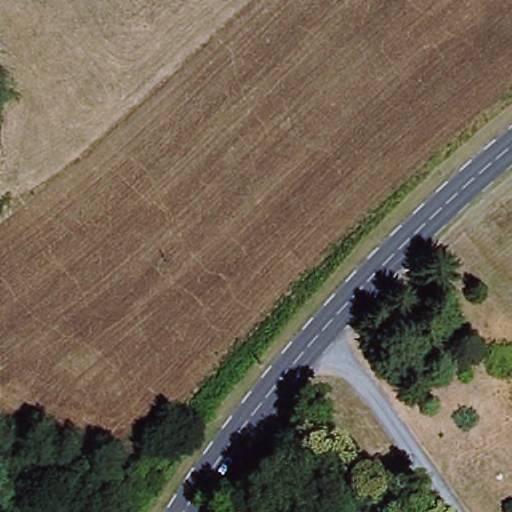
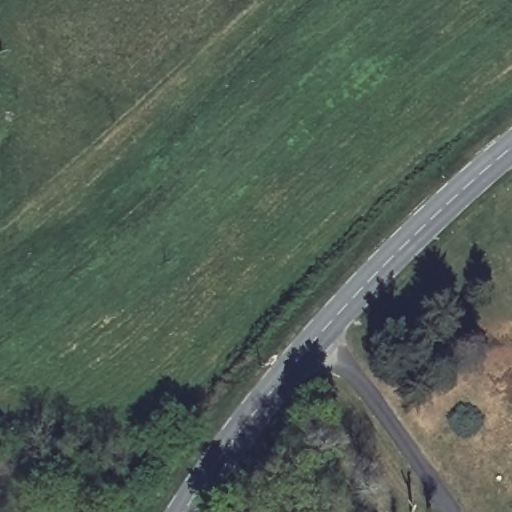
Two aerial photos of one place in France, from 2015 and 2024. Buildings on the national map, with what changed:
[]

